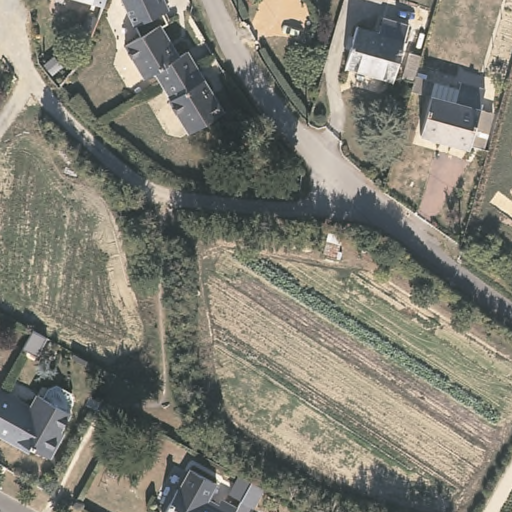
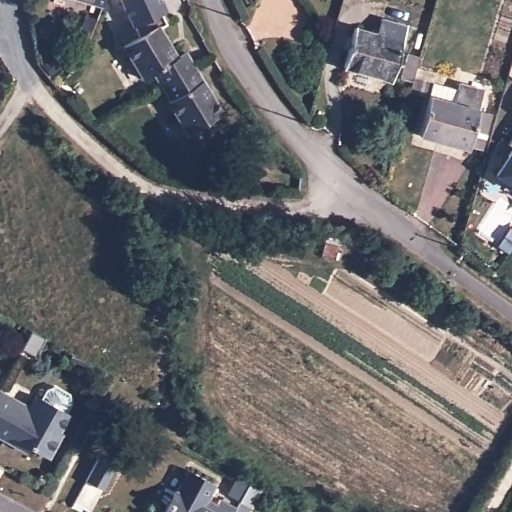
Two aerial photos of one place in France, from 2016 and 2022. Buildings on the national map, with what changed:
unchanged [(106,1),(105,5),(87,0),(107,0),(106,1)]
unchanged [(160,80),(158,78),(151,67),(141,74),(123,44),(139,35),(116,0),(159,0),(162,5),(157,7),(164,17),(157,22),(175,51),(183,46),(191,61),(160,80)]
unchanged [(410,21),(393,76),(346,62),(358,22),(379,28),(383,13),(410,21)]
unchanged [(100,19),(92,37),(81,32),(89,15),(100,19)]
unchanged [(436,78),(457,84),(453,97),(456,98),(462,77),(485,84),(480,105),(494,108),(483,144),(470,141),(470,143),(420,130),(431,91),(412,86),(415,77),(402,73),(410,49),(422,52),(416,72),(436,77),(436,78)]
unchanged [(191,61),(220,107),(185,128),(165,96),(167,94),(160,80),(191,61)]
new [(509,142),(512,138),(512,145),(509,142)]
new [(494,175),(512,149),(512,187),(494,175)]
unchanged [(47,340),(37,359),(22,351),(32,332),(47,340)]
unchanged [(44,402),(49,392),(57,390),(70,397),(71,406),(66,415),(70,417),(60,435),(62,436),(50,460),(21,444),(19,448),(0,437),(0,392),(29,408),(36,397),(44,402)]
unchanged [(178,491),(189,470),(214,483),(206,498),(215,504),(219,498),(237,508),(235,512),(163,512),(176,490),(178,491)]

